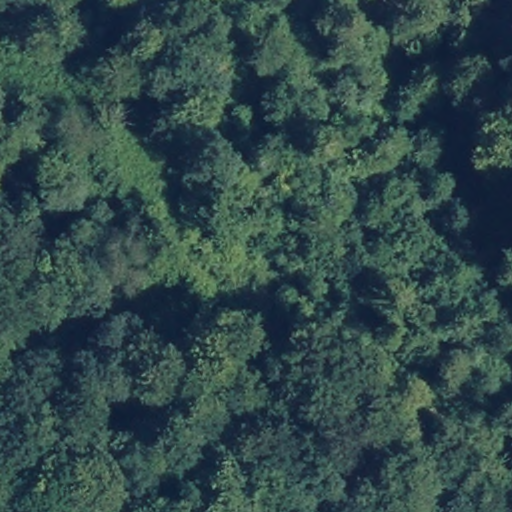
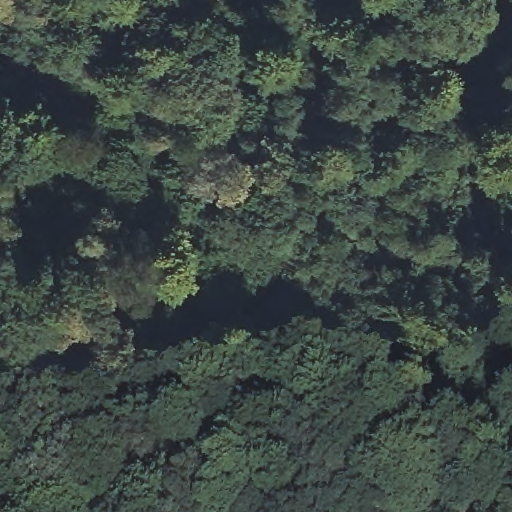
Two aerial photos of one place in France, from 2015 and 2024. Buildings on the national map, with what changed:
unchanged [(197,316),(220,300),(244,331),(226,346),(197,316)]

